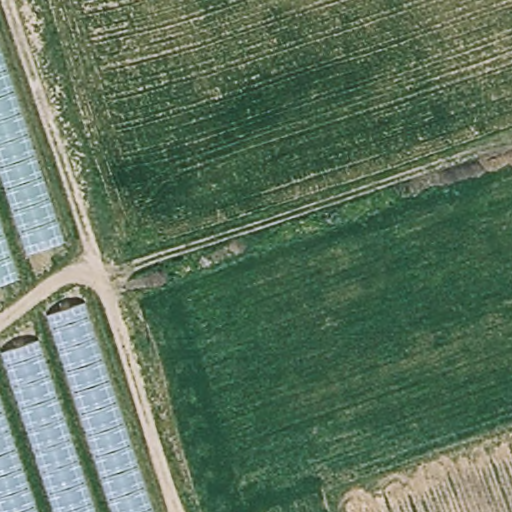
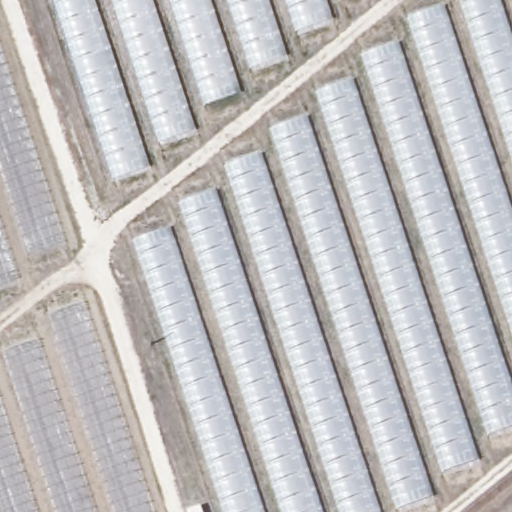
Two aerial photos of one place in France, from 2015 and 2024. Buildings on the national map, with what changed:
new [(326,1),(331,19),(280,38),(286,55),(234,74),(240,93),(189,112),(195,128),(143,147),(149,167),(113,178),(54,0),(329,0),(326,1)]
new [(183,222),(177,203),(230,184),(223,166),(275,145),(270,129),(321,110),(315,92),(366,73),(361,54),(412,36),(406,18),(455,0),(512,0),(512,429),(472,444),(477,462),(428,480),(433,497),(395,512),(223,512),(133,240),(183,222)]
unchanged [(65,239),(0,290),(0,44),(65,239)]
unchanged [(157,512),(0,512),(0,367),(87,299),(157,512)]

